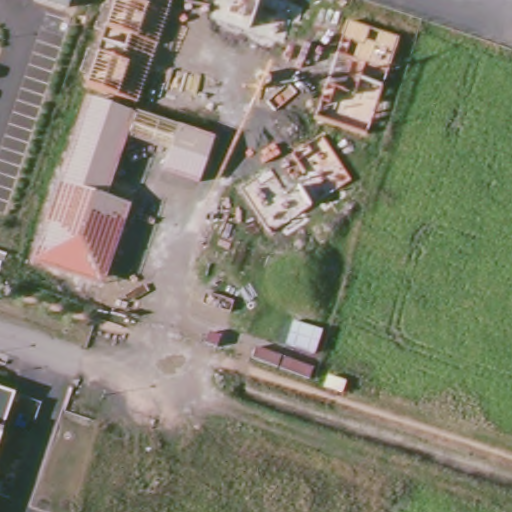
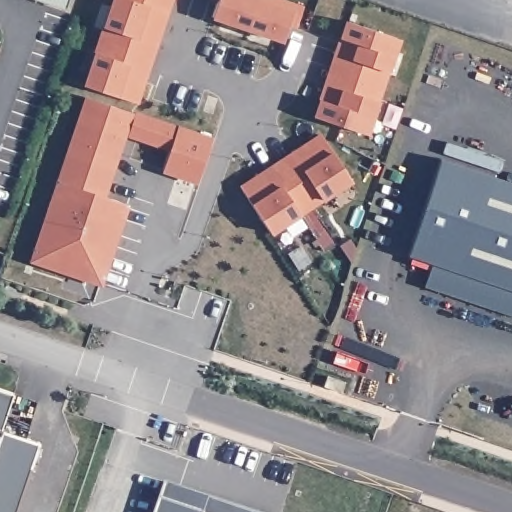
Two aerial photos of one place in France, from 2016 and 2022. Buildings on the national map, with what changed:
unchanged [(36,0),(72,0),(68,11),(36,0)]
unchanged [(172,0),(137,102),(117,95),(85,85),(114,0),(172,0)]
new [(280,0),(305,9),(302,21),(294,19),(287,41),(215,17),(221,0),(280,0)]
new [(318,117),(330,85),(339,55),(350,21),(401,39),(370,134),(318,117)]
unchanged [(30,261),(85,96),(214,136),(197,184),(163,172),(169,152),(126,138),(106,196),(130,205),(102,286),(30,261)]
new [(272,237),(241,193),(325,135),(355,180),(272,237)]
new [(512,183),(512,317),(424,287),(432,263),(408,255),(441,159),(512,183)]
unchanged [(15,395),(2,433),(38,448),(16,512),(0,512),(0,391),(15,395)]
new [(165,483),(190,491),(251,512),(156,512),(160,500),(165,483)]

